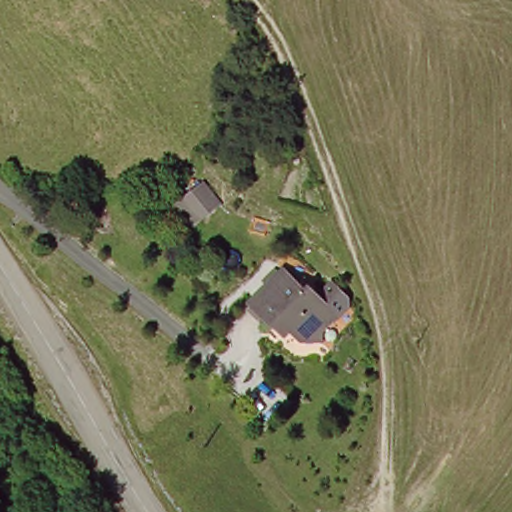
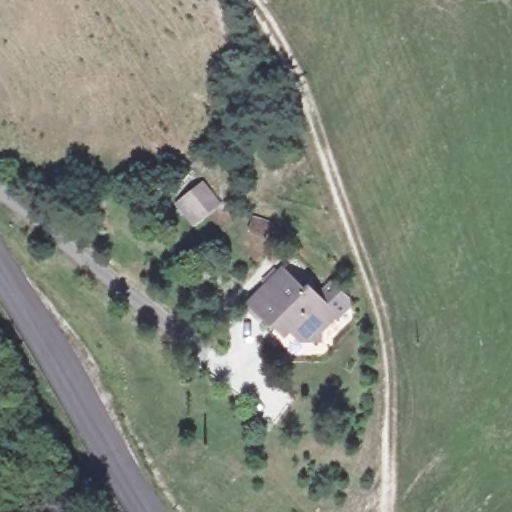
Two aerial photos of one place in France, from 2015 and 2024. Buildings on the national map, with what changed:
unchanged [(191,204),(205,192),(219,209),(206,221),(191,204)]
unchanged [(283,273),(306,294),(309,291),(333,314),(320,327),(321,340),(303,345),(280,322),(273,330),(249,307),(283,273)]

